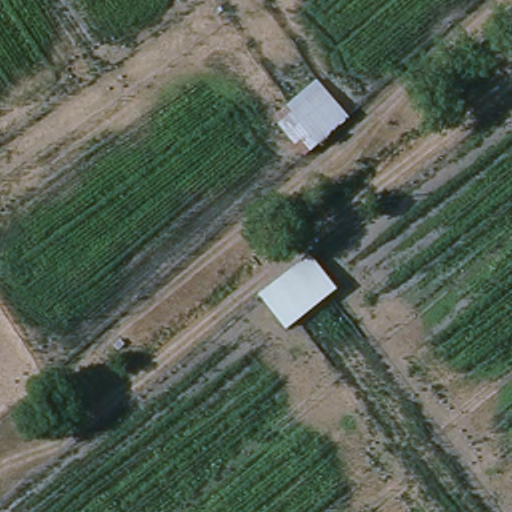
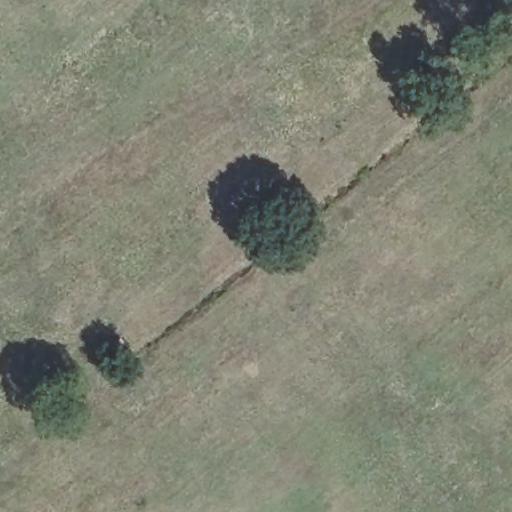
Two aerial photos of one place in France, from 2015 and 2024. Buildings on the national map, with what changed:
demolished [(351,115),(318,143),(288,111),(321,79),(351,115)]
demolished [(342,288),(288,332),(257,292),(311,253),(342,288)]

